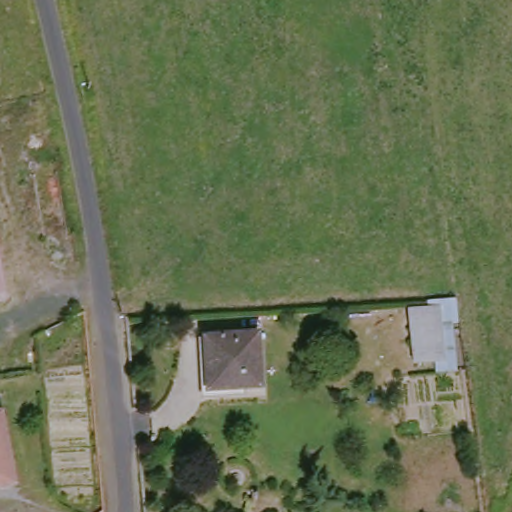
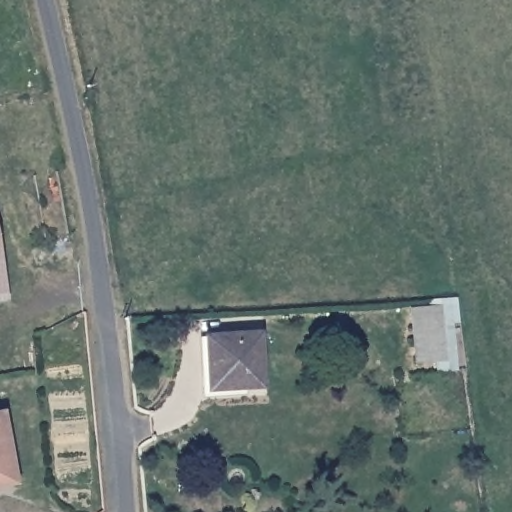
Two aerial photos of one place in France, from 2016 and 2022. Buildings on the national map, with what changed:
unchanged [(445,310),(450,360),(422,362),(417,312),(445,310)]
unchanged [(264,389),(209,392),(208,340),(261,336),(264,389)]
unchanged [(11,421),(16,491),(0,492),(0,421),(11,421)]

